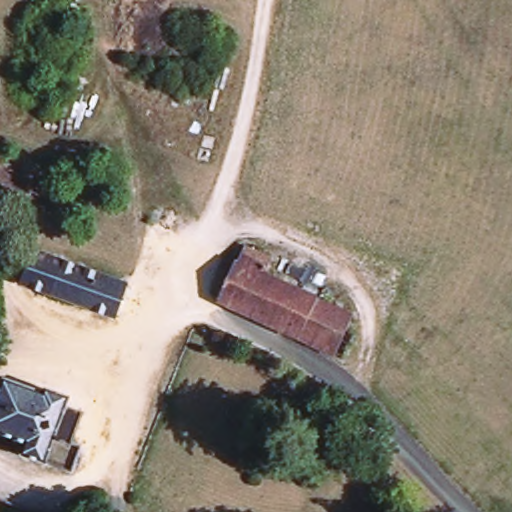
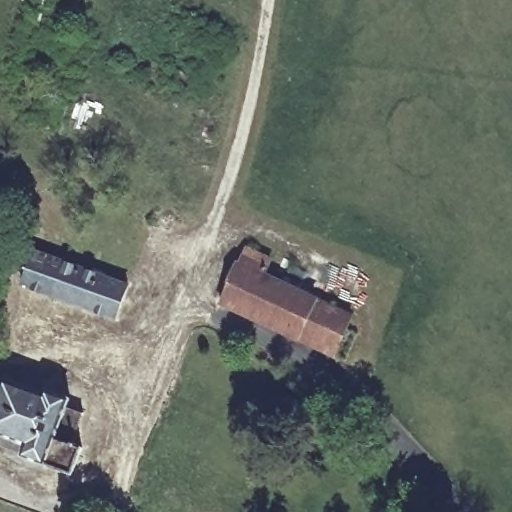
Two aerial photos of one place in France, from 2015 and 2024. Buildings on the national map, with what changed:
unchanged [(124,285),(112,315),(22,283),(34,253),(124,285)]
unchanged [(272,265),(265,278),(353,317),(335,356),(220,306),(227,289),(244,253),(272,265)]
unchanged [(45,398),(64,403),(60,411),(78,417),(67,448),(77,451),(70,475),(24,458),(28,446),(0,436),(0,405),(5,388),(43,401),(45,398)]

